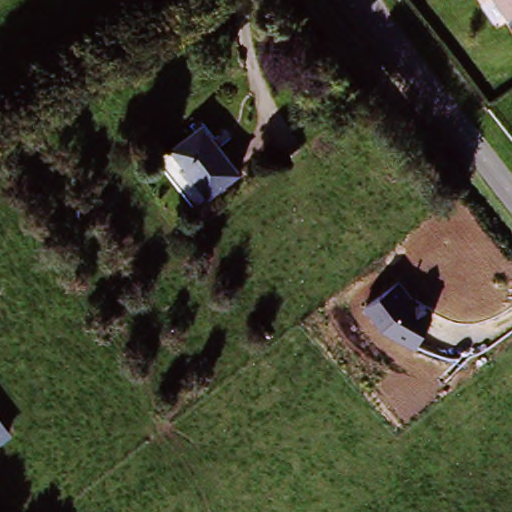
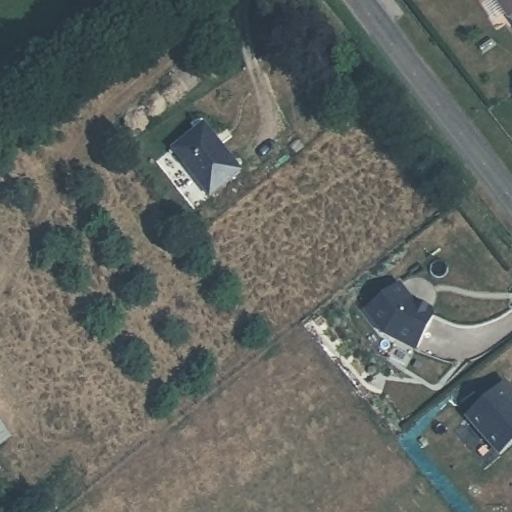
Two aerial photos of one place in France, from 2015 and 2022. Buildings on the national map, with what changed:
unchanged [(512,0),(512,28),(493,0),(512,0)]
unchanged [(197,133),(212,155),(220,150),(239,177),(207,199),(173,150),(197,133)]
unchanged [(415,305),(433,316),(419,352),(381,333),(364,309),(400,283),(415,305)]
new [(506,401),(512,408),(512,437),(492,453),(461,414),(501,384),(511,397),(506,401)]
unchanged [(0,450),(0,426),(12,442),(0,450)]

